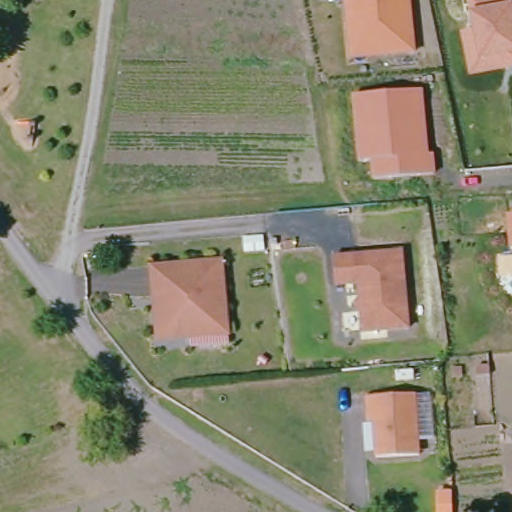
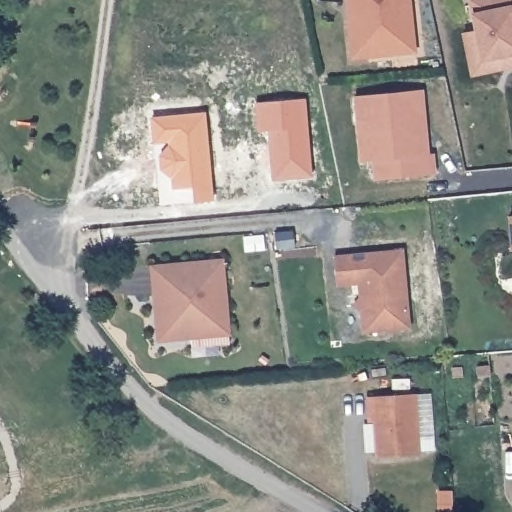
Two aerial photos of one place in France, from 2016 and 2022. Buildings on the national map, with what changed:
unchanged [(350,60),(343,0),(409,0),(415,54),(350,60)]
unchanged [(475,31),(469,0),(512,0),(512,54),(480,60),(475,31)]
unchanged [(480,60),(512,54),(512,66),(470,74),(462,33),(475,31),(480,60)]
unchanged [(418,92),(420,120),(415,120),(416,130),(421,130),(423,141),(424,156),(429,155),(431,175),(372,181),(369,143),(366,125),(354,126),(351,98),(418,92)]
new [(305,99),(312,177),(275,180),(270,132),(259,132),(256,104),(305,99)]
new [(204,113),(211,200),(193,202),(192,186),(173,188),(172,176),(161,168),(160,153),(169,145),(168,140),(153,142),(151,117),(204,113)]
unchanged [(512,215),(512,249),(511,249),(508,215),(512,215)]
unchanged [(405,255),(412,332),(391,334),(385,330),(366,332),(361,288),(339,290),(336,262),(405,255)]
unchanged [(191,341),(190,331),(153,335),(148,264),(211,257),(221,256),(225,293),(227,327),(228,337),(191,341)]
unchanged [(421,456),(376,459),(371,425),(365,425),(364,417),(361,399),(414,395),(421,456)]

